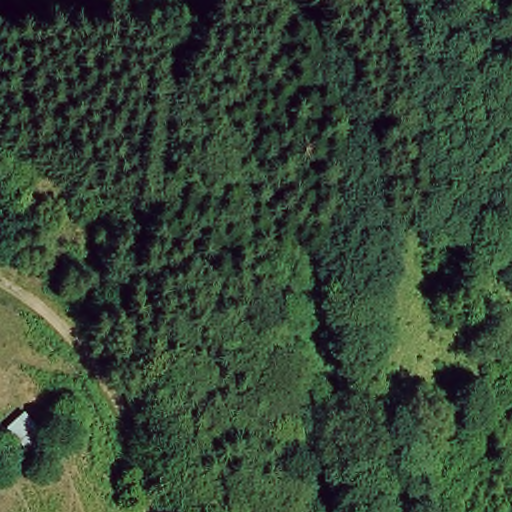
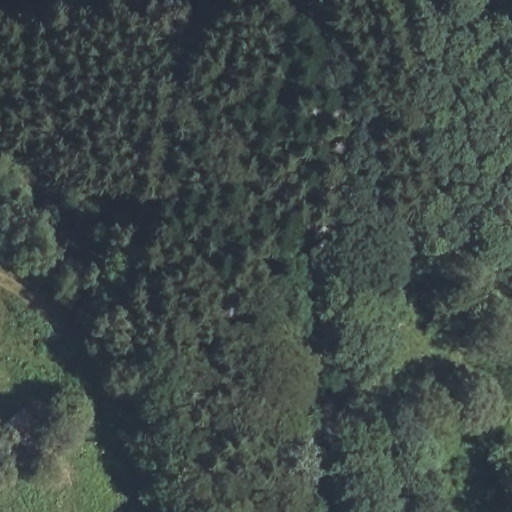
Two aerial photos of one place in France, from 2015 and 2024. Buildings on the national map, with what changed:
unchanged [(57,445),(35,461),(6,428),(28,409),(57,445)]

